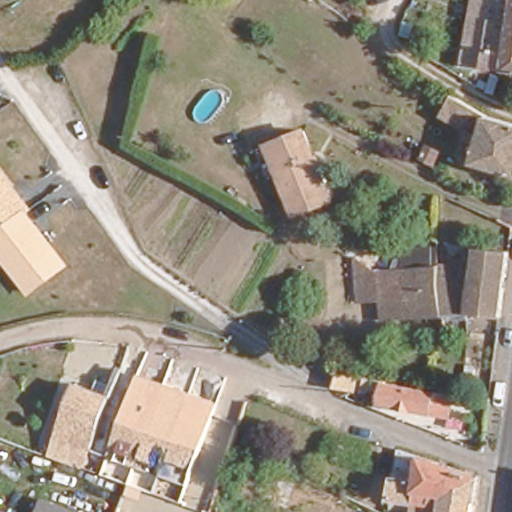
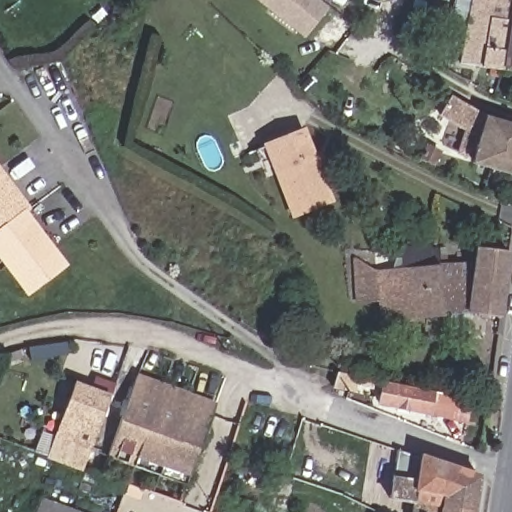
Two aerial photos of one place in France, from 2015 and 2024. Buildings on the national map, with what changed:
new [(307,39),(258,0),(319,0),(331,9),(307,39)]
unchanged [(472,0),(512,0),(512,67),(481,62),(463,60),(470,15),(472,0)]
unchanged [(471,155),(456,150),(462,129),(436,113),(447,91),(481,111),(512,121),(512,171),(469,160),(471,155)]
unchanged [(300,134),(326,203),(285,219),(257,150),(300,134)]
unchanged [(436,151),(431,165),(414,159),(420,145),(436,151)]
unchanged [(31,209),(27,211),(69,266),(28,296),(0,260),(0,168),(31,209)]
unchanged [(466,310),(377,318),(376,300),(357,302),(351,255),(390,280),(405,258),(411,258),(410,242),(428,241),(431,263),(471,258),(473,245),(506,249),(497,313),(466,310)]
unchanged [(56,435),(77,380),(113,395),(125,365),(154,376),(215,399),(214,410),(180,498),(137,482),(75,459),(51,450),(56,435)]
unchanged [(356,372),(353,387),(337,384),(339,370),(356,372)]
unchanged [(387,381),(433,390),(431,408),(383,399),(387,381)]
unchanged [(435,459),(474,472),(470,501),(437,496),(436,500),(409,496),(386,492),(393,444),(435,459)]
unchanged [(37,496),(81,512),(31,512),(37,496)]
unchanged [(409,496),(436,500),(437,496),(470,501),(468,512),(407,512),(409,496)]

